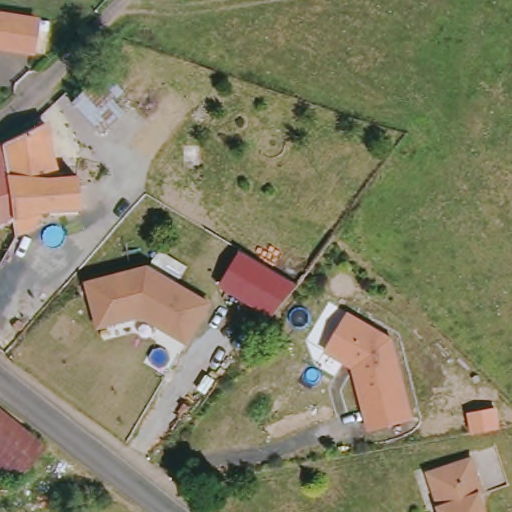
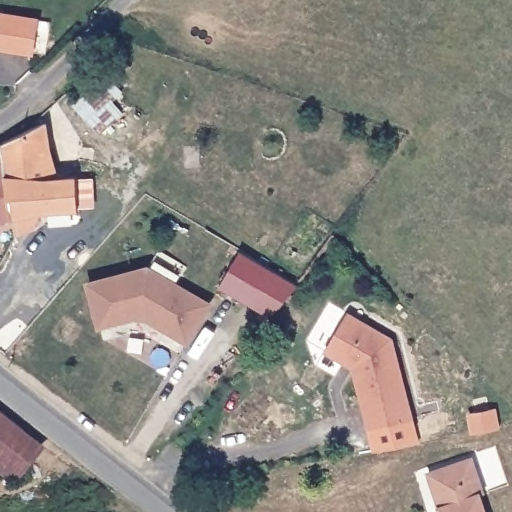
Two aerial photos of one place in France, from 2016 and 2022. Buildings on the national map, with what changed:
unchanged [(31,53),(0,50),(0,17),(35,21),(31,53)]
unchanged [(103,73),(122,89),(115,99),(125,108),(106,133),(74,104),(103,73)]
unchanged [(22,217),(6,144),(51,123),(59,176),(82,177),(85,208),(49,209),(22,217)]
unchanged [(0,226),(0,147),(6,144),(22,217),(0,226)]
unchanged [(228,279),(250,244),(309,278),(279,312),(228,279)]
unchanged [(147,270),(207,307),(176,356),(144,336),(131,333),(101,340),(88,283),(147,270)]
unchanged [(348,359),(345,363),(327,351),(350,315),(393,341),(412,422),(370,431),(355,368),(357,364),(348,359)]
unchanged [(19,472),(0,457),(0,402),(48,440),(19,472)]
unchanged [(486,490),(494,512),(450,512),(448,505),(436,469),(444,467),(477,455),(490,489),(486,490)]

